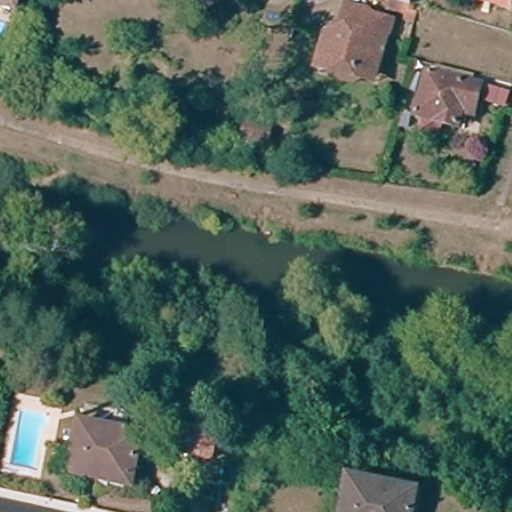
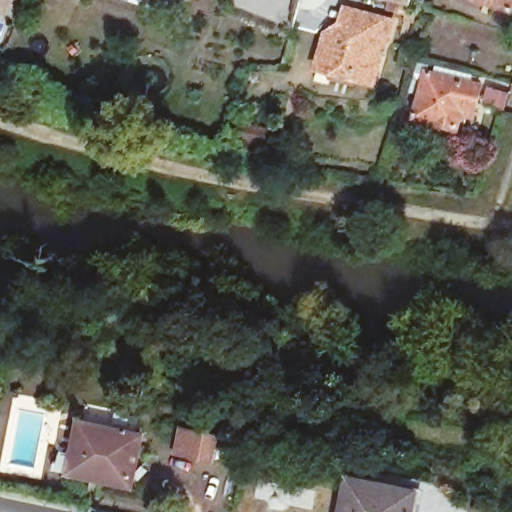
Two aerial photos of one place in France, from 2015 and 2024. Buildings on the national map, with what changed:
unchanged [(8,1),(6,0),(9,0),(8,1)]
unchanged [(23,11),(15,8),(18,0),(23,0),(26,1),(23,11)]
unchanged [(188,2),(182,0),(189,0),(188,2)]
unchanged [(326,19),(336,21),(343,0),(355,0),(393,11),(388,28),(385,27),(374,65),(372,74),(360,70),(351,75),(329,69),(325,61),(315,57),(317,50),(326,19)]
unchanged [(410,2),(402,0),(411,0),(410,2)]
unchanged [(512,7),(486,0),(512,0),(512,7)]
unchanged [(480,79),(474,105),(461,101),(457,120),(416,111),(428,66),(480,79)]
unchanged [(98,467),(97,474),(63,466),(67,449),(78,450),(85,418),(146,432),(137,475),(98,467)]
unchanged [(182,429),(216,436),(211,461),(177,454),(182,429)]
unchanged [(419,488),(414,512),(347,512),(354,476),(419,488)]

